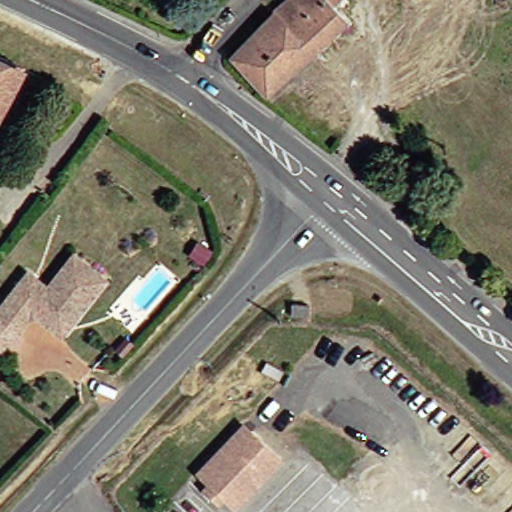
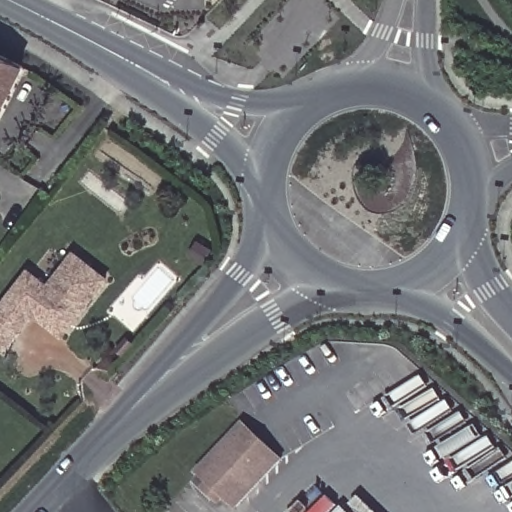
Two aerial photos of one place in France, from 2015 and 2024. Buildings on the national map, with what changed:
demolished [(278,6),(286,0),(333,0),(350,17),(271,90),(236,52),(278,6)]
unchanged [(0,108),(0,53),(23,65),(0,108)]
unchanged [(0,320),(0,308),(27,272),(47,287),(72,254),(106,279),(74,321),(61,311),(49,326),(37,317),(30,318),(17,334),(0,320)]
unchanged [(205,486),(210,481),(199,470),(246,422),(283,458),(236,506),(225,495),(220,501),(205,486)]

